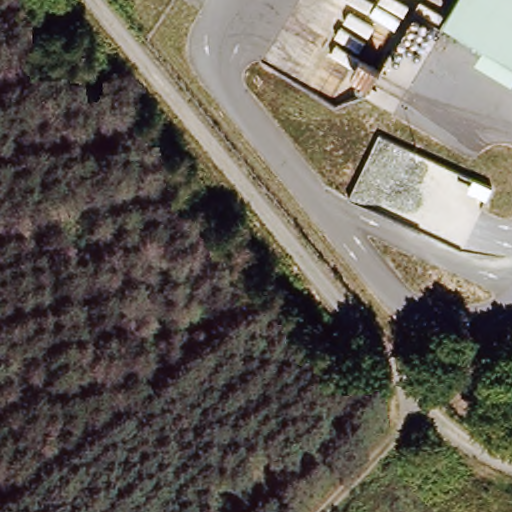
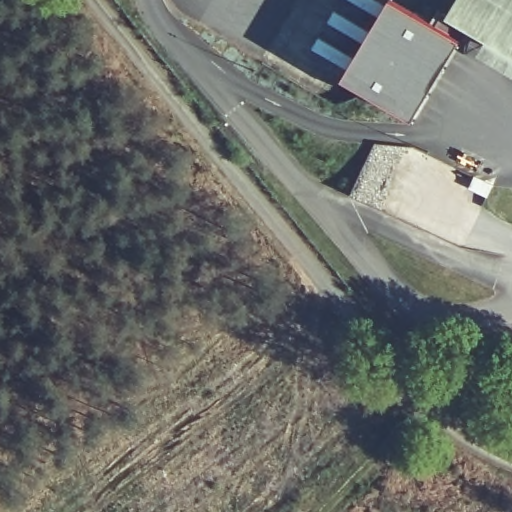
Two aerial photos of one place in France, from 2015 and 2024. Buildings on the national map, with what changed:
new [(397,0),(432,23),(437,9),(447,16),(465,26),(460,40),(410,121),(340,79),(387,0),(397,0)]
unchanged [(447,16),(457,0),(512,0),(512,55),(447,16)]

